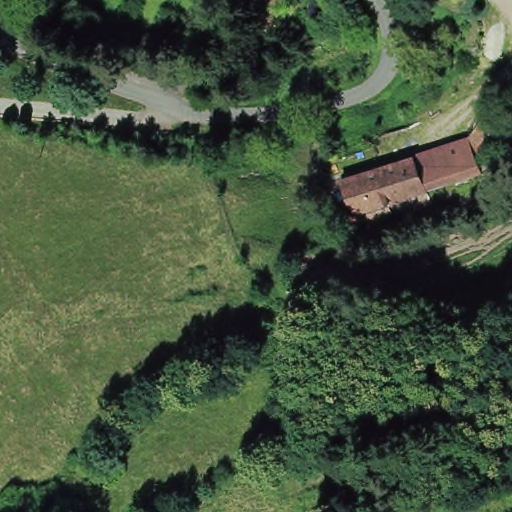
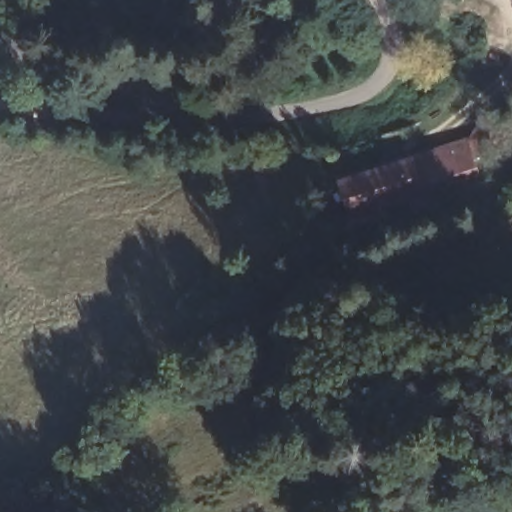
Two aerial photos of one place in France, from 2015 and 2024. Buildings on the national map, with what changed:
unchanged [(460,146),(471,179),(417,197),(407,164),(460,146)]
unchanged [(417,197),(385,207),(375,175),(407,164),(417,197)]
unchanged [(385,207),(345,221),(335,189),(375,175),(385,207)]

